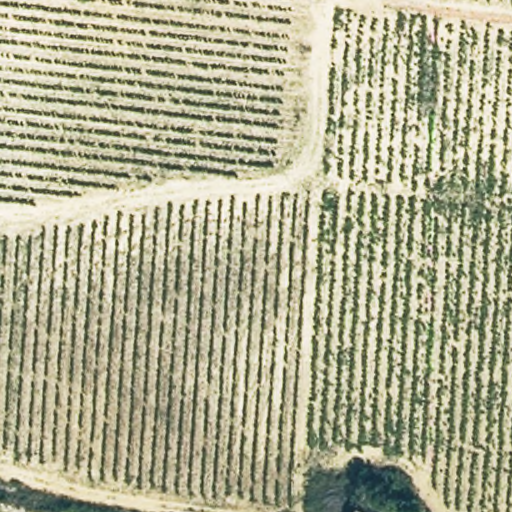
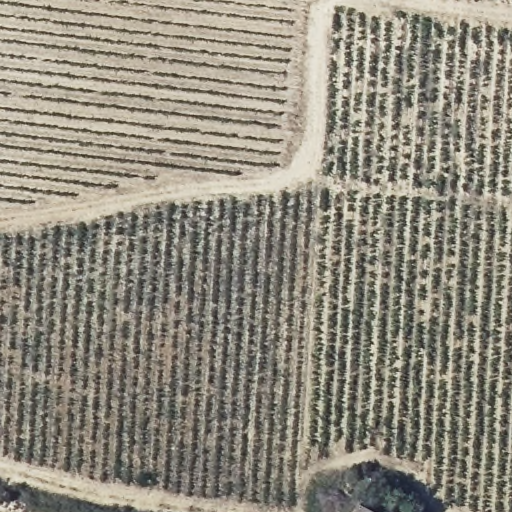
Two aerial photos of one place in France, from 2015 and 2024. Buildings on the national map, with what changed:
unchanged [(374,512),(353,512),(357,506),(374,512)]

